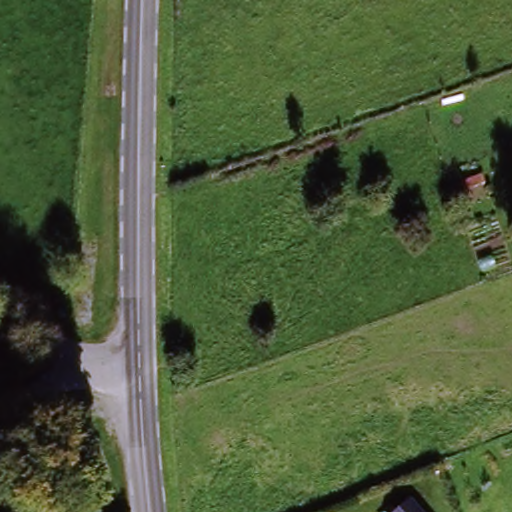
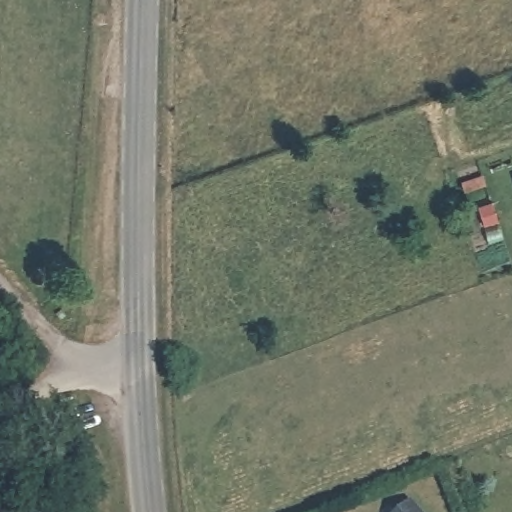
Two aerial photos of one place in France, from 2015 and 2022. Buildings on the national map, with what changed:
unchanged [(420,512),(396,512),(411,499),(420,512)]

